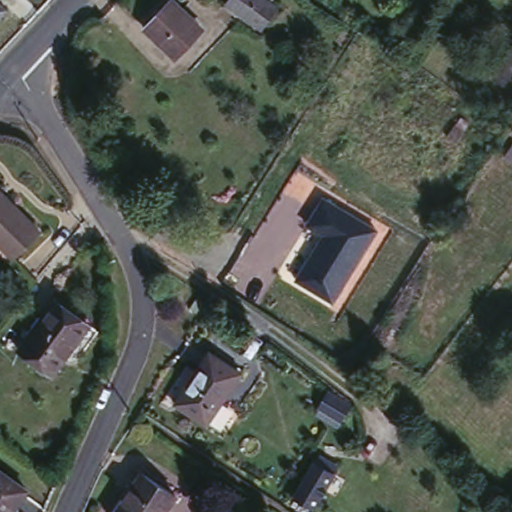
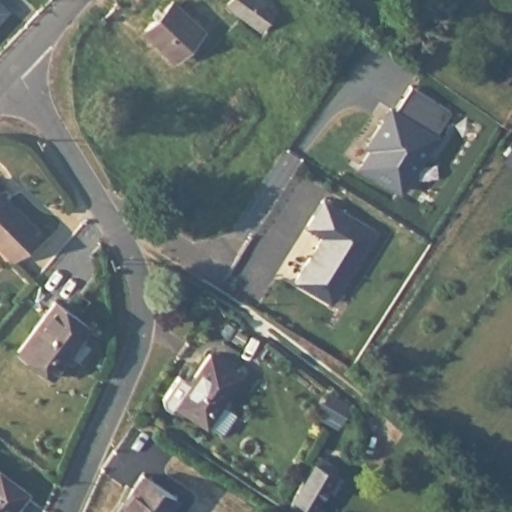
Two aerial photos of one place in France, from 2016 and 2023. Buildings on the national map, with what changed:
unchanged [(174,0),(200,24),(173,54),(143,28),(168,0),(174,0)]
unchanged [(231,0),(274,0),(278,3),(263,23),(231,0)]
unchanged [(0,3),(4,7),(0,11),(0,3)]
unchanged [(503,86),(493,80),(512,49),(512,71),(503,86)]
new [(359,161),(389,108),(394,111),(407,88),(449,111),(402,192),(359,161)]
demolished [(449,151),(445,148),(456,130),(462,134),(449,151)]
unchanged [(0,247),(0,192),(39,230),(11,259),(0,247)]
unchanged [(377,229),(333,304),(293,279),(319,234),(304,222),(322,194),(377,229)]
unchanged [(60,351),(64,354),(49,376),(14,351),(51,298),(83,321),(60,351)]
unchanged [(204,421),(174,399),(209,350),(238,371),(204,421)]
new [(329,392),(351,406),(337,427),(329,422),(315,413),(319,408),(329,392)]
unchanged [(308,506),(288,494),(308,459),(328,471),(308,506)]
unchanged [(0,467),(25,487),(5,512),(0,512),(0,467)]
unchanged [(144,469),(177,492),(163,512),(116,512),(144,469)]

